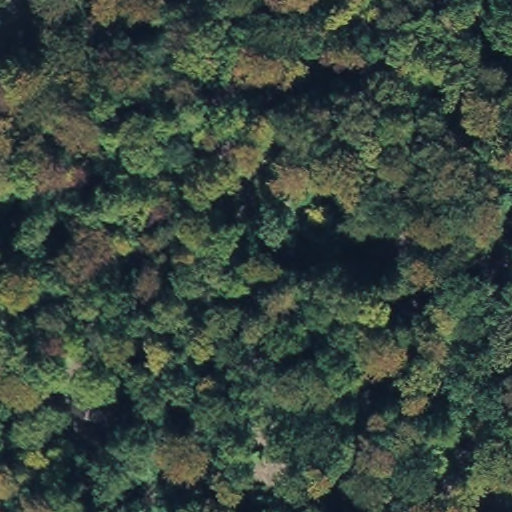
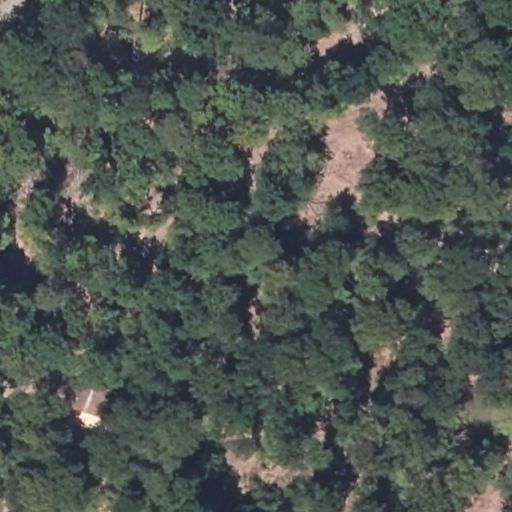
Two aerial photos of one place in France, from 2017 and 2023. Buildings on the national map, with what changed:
unchanged [(107,416),(67,403),(77,372),(113,385),(107,416)]

